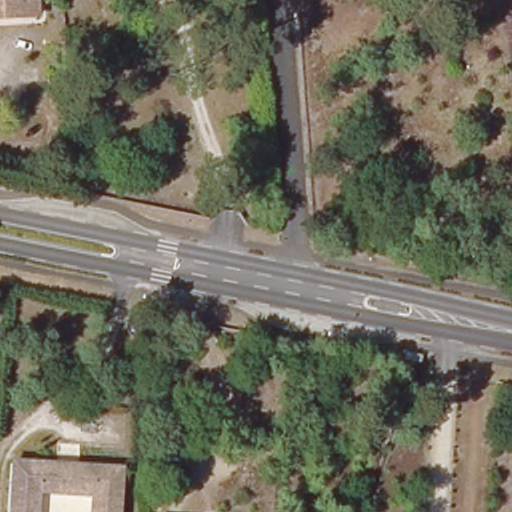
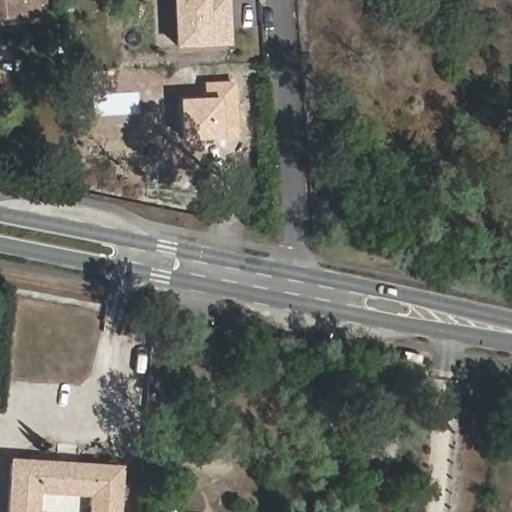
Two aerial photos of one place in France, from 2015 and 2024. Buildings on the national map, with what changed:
unchanged [(36,15),(2,18),(0,18),(0,0),(35,0),(36,15)]
new [(235,40),(182,44),(179,0),(232,0),(235,40)]
new [(235,139),(182,142),(180,100),(205,99),(204,82),(233,81),(235,139)]
unchanged [(87,512),(87,500),(39,499),(38,512),(6,512),(10,461),(124,468),(120,512),(87,512)]

